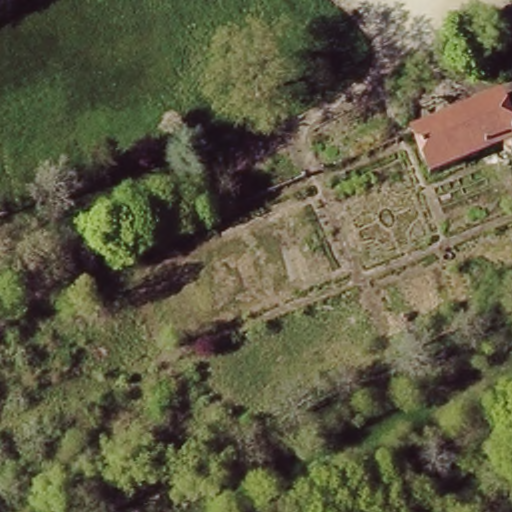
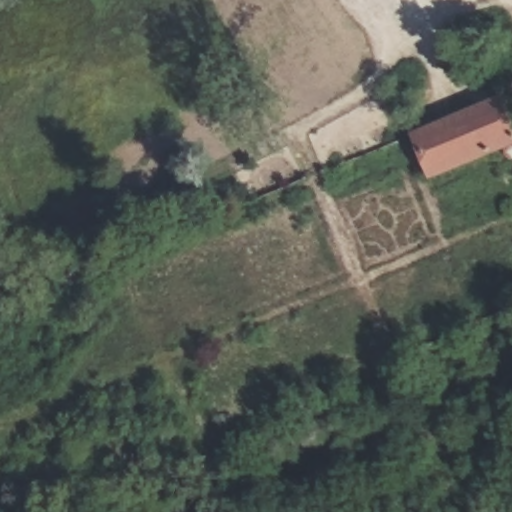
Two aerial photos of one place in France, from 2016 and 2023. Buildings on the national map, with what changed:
unchanged [(499,95),(512,129),(512,132),(425,165),(410,131),(499,95)]

